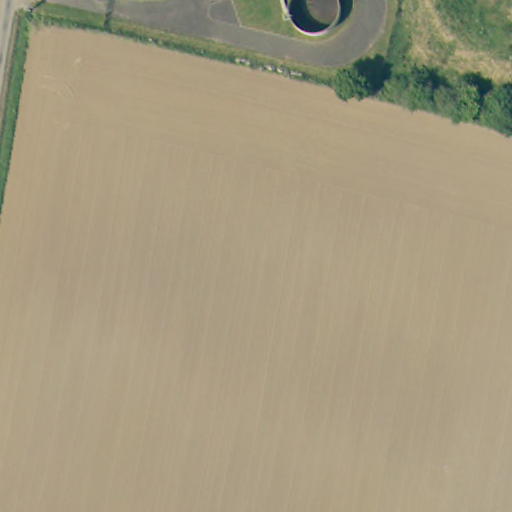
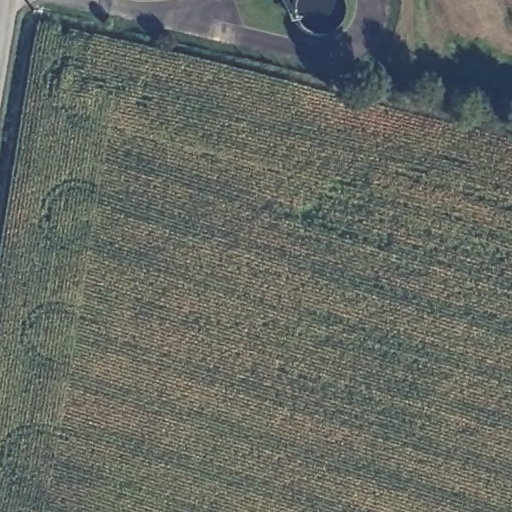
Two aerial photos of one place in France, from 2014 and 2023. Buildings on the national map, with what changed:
[]

